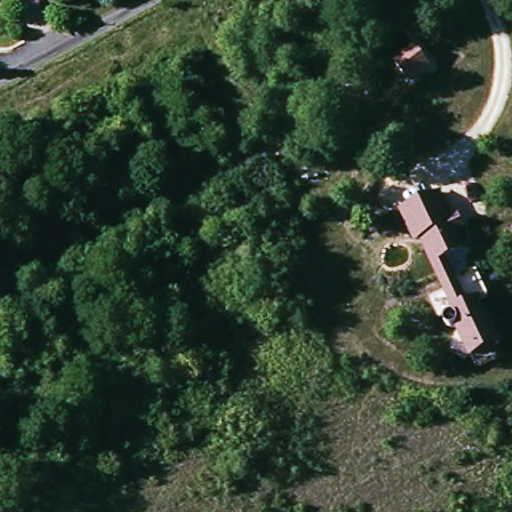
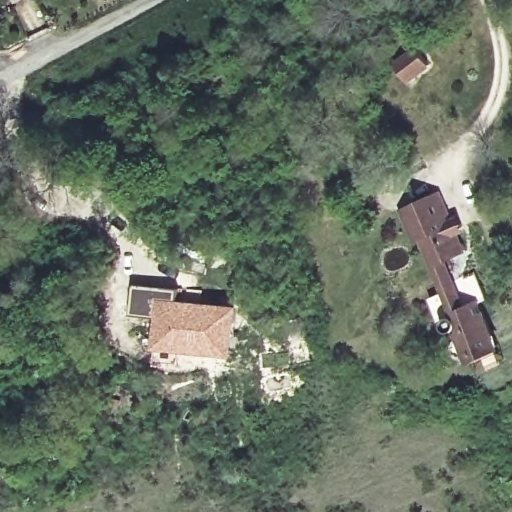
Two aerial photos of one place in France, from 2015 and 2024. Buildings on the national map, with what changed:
new [(417,49),(430,65),(410,82),(397,64),(417,49)]
unchanged [(477,374),(470,358),(455,328),(450,330),(444,331),(440,329),(438,319),(435,320),(426,298),(447,289),(423,236),(412,241),(398,210),(435,193),(470,269),(472,269),(484,295),(476,300),(497,345),(495,346),(502,362),(477,374)]
new [(132,284),(181,287),(180,299),(240,304),(233,359),(203,354),(153,351),(155,317),(129,314),(132,284)]

